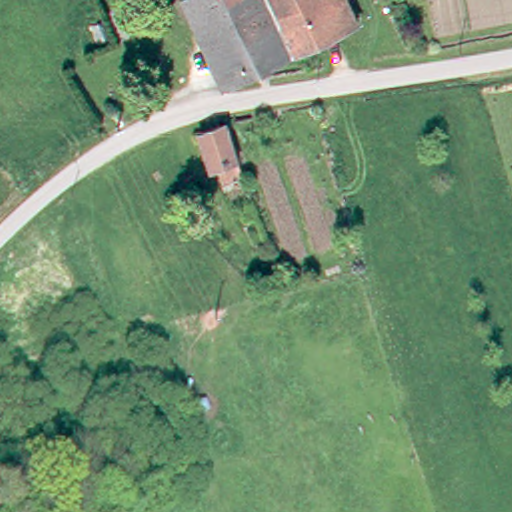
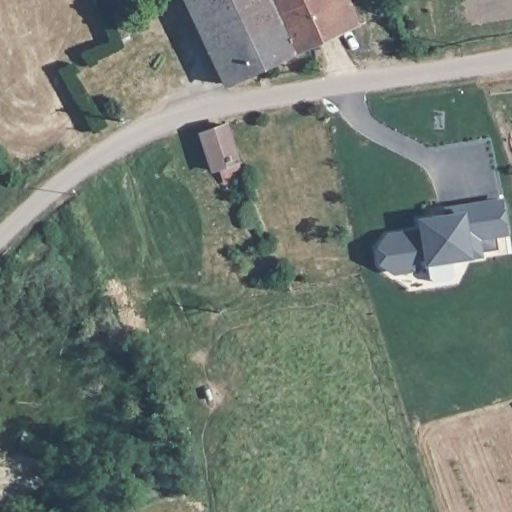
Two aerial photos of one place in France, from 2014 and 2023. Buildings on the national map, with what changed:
unchanged [(192,0),(273,0),(280,14),(258,25),(272,56),(229,75),(192,0)]
unchanged [(272,56),(258,25),(280,14),(273,0),(338,0),(348,22),(272,56)]
unchanged [(213,164),(207,166),(193,133),(222,123),(236,156),(242,172),(219,179),(213,164)]
new [(389,235),(424,230),(423,220),(449,215),(448,209),(503,200),(508,231),(498,233),(500,248),(482,252),(482,254),(429,262),(428,256),(419,258),(410,269),(396,271),(383,262),(381,248),(389,235)]

